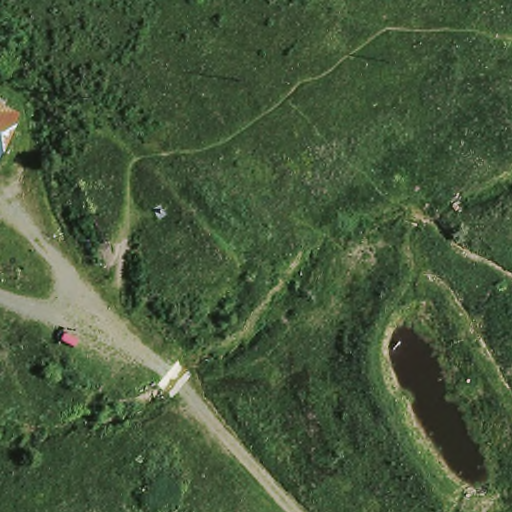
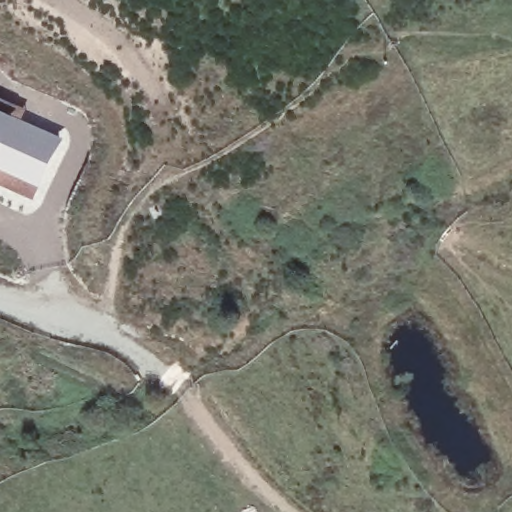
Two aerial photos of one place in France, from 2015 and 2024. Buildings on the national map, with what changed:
demolished [(0,152),(0,104),(17,112),(0,152)]
new [(19,121),(0,162),(0,110),(20,120),(19,121)]
new [(0,185),(0,162),(19,121),(64,141),(37,202),(0,185)]

